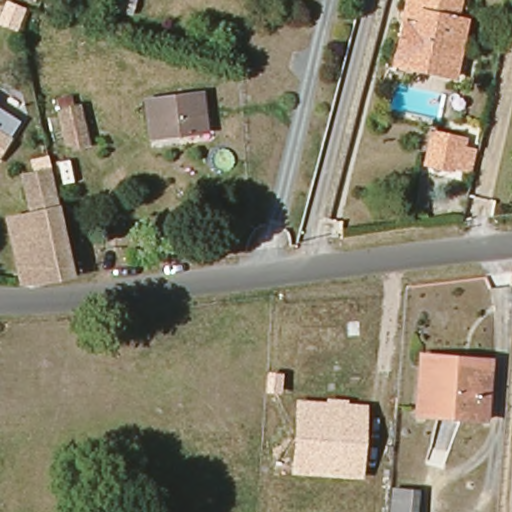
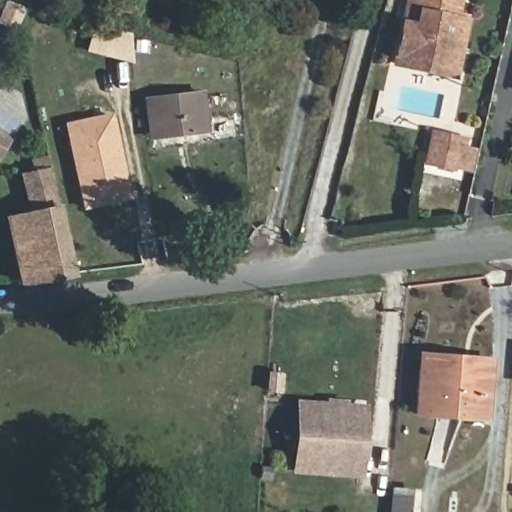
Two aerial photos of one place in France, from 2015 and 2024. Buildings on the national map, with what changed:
unchanged [(130,16),(105,10),(108,0),(136,0),(130,16)]
unchanged [(451,23),(463,26),(457,52),(450,50),(445,68),(396,58),(403,28),(416,31),(420,16),(413,14),(417,0),(456,0),(451,23)]
unchanged [(196,96),(201,131),(147,137),(144,102),(196,96)]
demolished [(74,109),(82,142),(65,146),(57,113),(74,109)]
new [(112,112),(130,201),(82,211),(63,123),(112,112)]
unchanged [(0,119),(6,122),(0,135),(0,119)]
unchanged [(0,135),(6,140),(0,151),(0,135)]
unchanged [(465,141),(460,167),(436,162),(441,135),(465,141)]
unchanged [(49,279),(35,212),(27,176),(49,170),(70,275),(49,279)]
unchanged [(21,285),(9,219),(35,212),(49,279),(21,285)]
unchanged [(466,361),(486,362),(483,417),(416,413),(419,367),(465,368),(466,361)]
unchanged [(295,400),(367,405),(361,480),(290,475),(295,400)]
unchanged [(395,512),(396,497),(416,498),(415,512),(395,512)]

